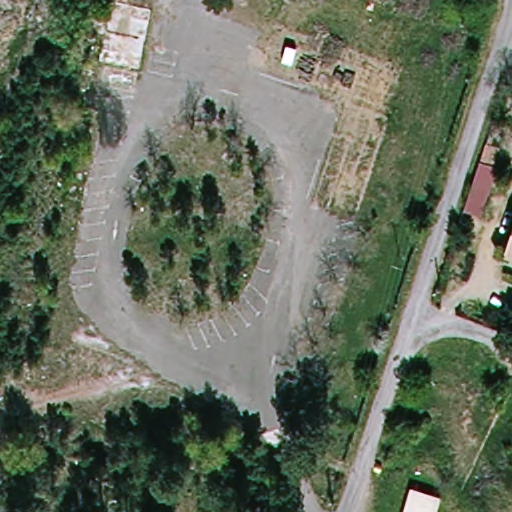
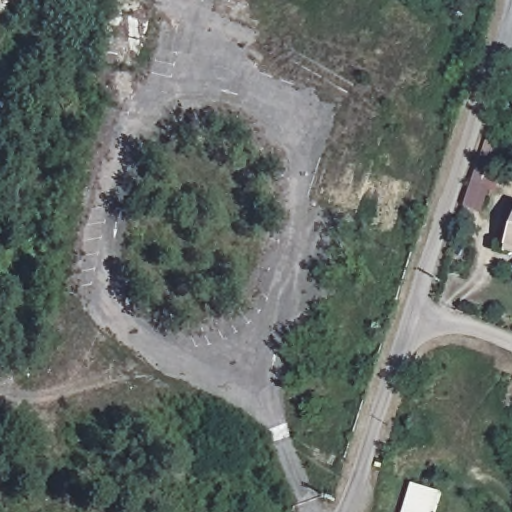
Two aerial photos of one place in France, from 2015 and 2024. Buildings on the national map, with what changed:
unchanged [(406,512),(415,481),(446,491),(440,512),(406,512)]

